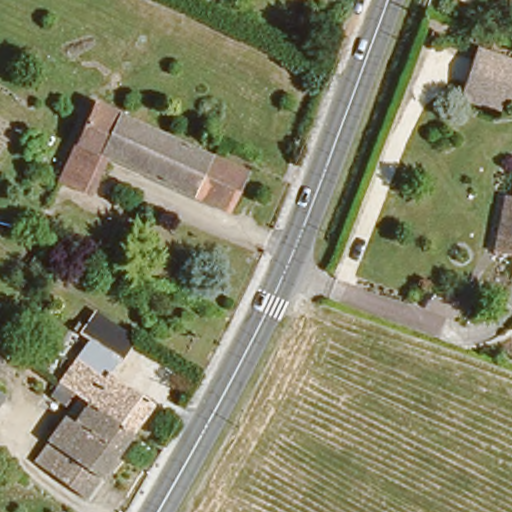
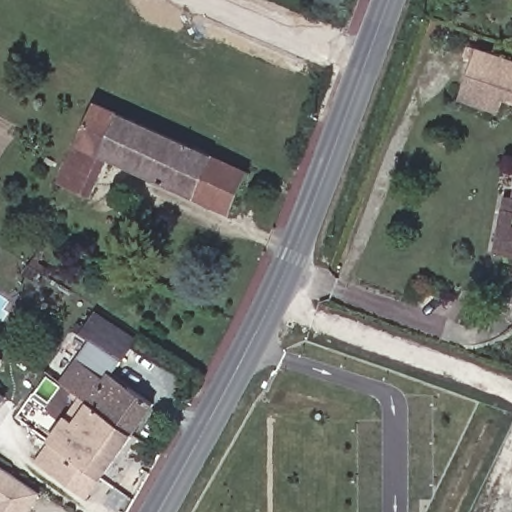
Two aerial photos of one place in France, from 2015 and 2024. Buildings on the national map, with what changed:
unchanged [(512,61),(512,106),(499,101),(493,114),(455,101),(474,48),(512,61)]
unchanged [(99,102),(241,169),(226,207),(111,156),(91,192),(60,176),(99,102)]
unchanged [(494,249),(496,236),(503,203),(505,192),(512,193),(512,252),(494,249)]
unchanged [(53,276),(42,268),(42,239),(50,239),(50,242),(50,263),(61,271),(58,279),(53,276)]
unchanged [(85,403),(60,387),(48,378),(72,338),(66,334),(84,308),(127,336),(100,378),(124,394),(128,390),(147,403),(128,433),(85,403)]
unchanged [(0,360),(0,353),(3,355),(0,360)]
unchanged [(0,410),(0,390),(9,396),(0,410)]
unchanged [(104,469),(49,434),(60,418),(70,424),(85,403),(128,433),(104,469)]
unchanged [(88,492),(35,458),(49,434),(104,469),(88,492)]
new [(23,512),(0,512),(0,468),(36,492),(23,512)]

